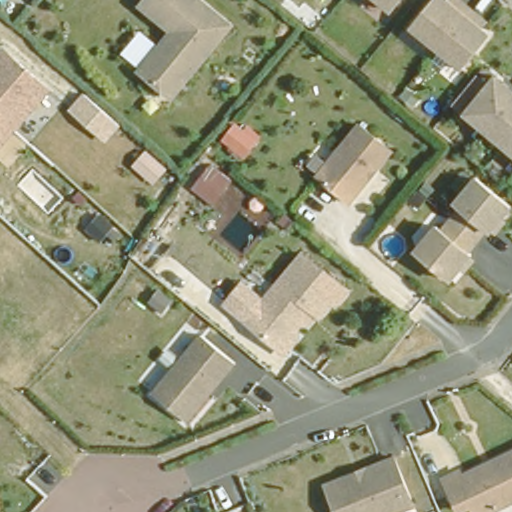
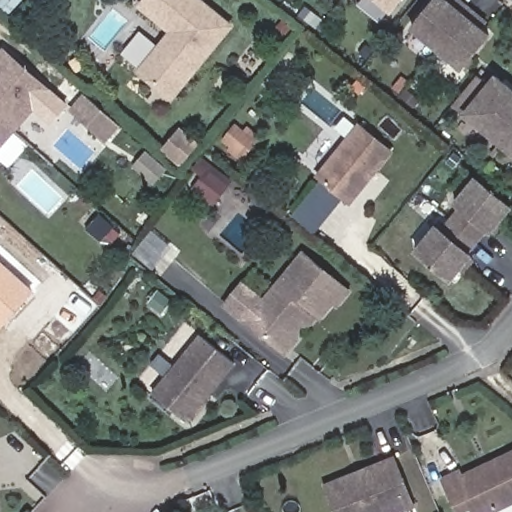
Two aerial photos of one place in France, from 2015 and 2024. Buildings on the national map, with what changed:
unchanged [(138,72),(170,31),(139,6),(143,0),(196,0),(228,25),(170,97),(138,72)]
unchanged [(375,0),(402,0),(391,13),(375,0)]
unchanged [(408,25),(428,0),(458,0),(476,15),(481,18),(476,25),(484,32),(458,66),(408,25)]
unchanged [(0,52),(1,50),(47,91),(0,145),(0,52)]
unchanged [(461,112),(491,73),(512,90),(512,153),(461,112)]
unchanged [(105,142),(69,111),(84,92),(120,124),(105,142)]
unchanged [(353,204),(350,202),(319,178),(361,125),(394,151),(353,204)]
unchanged [(459,268),(451,279),(416,251),(435,226),(441,230),(459,207),(454,202),(474,177),(509,205),(498,219),(502,222),(494,232),(490,229),(489,231),(485,227),(467,251),(471,254),(469,256),(473,259),(463,271),(459,268)]
unchanged [(281,348),(250,322),(242,316),(259,295),(264,299),(303,251),(303,252),(304,252),(304,253),(305,253),(305,254),(306,254),(307,254),(307,255),(308,255),(309,255),(309,256),(310,256),(310,257),(311,257),(349,288),(338,301),(334,298),(320,314),(289,354),(281,348)]
new [(0,330),(0,259),(35,291),(0,330)]
unchanged [(205,399),(188,421),(154,393),(203,334),(235,361),(205,399)]
unchanged [(494,512),(469,512),(469,510),(463,512),(455,512),(442,475),(463,466),(464,472),(512,449),(512,505),(494,512)]
unchanged [(414,509),(406,512),(333,512),(320,481),(396,455),(414,509)]
unchanged [(0,489),(1,488),(2,512),(0,512),(0,489)]

